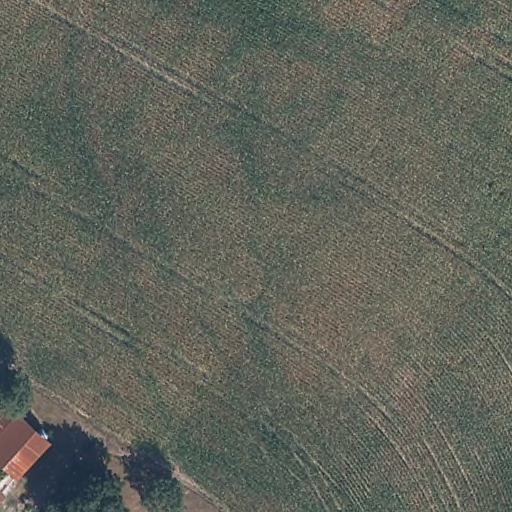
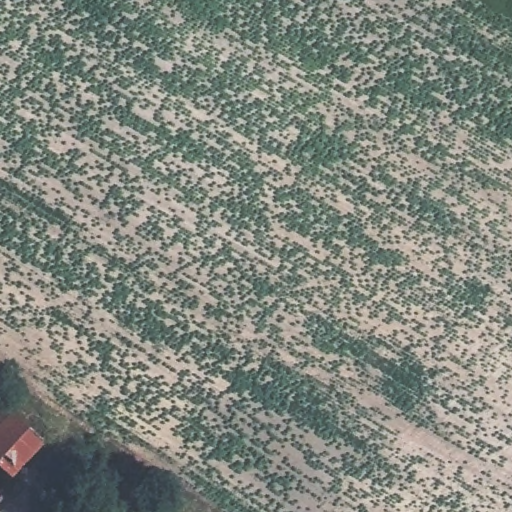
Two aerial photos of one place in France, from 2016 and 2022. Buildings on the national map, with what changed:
unchanged [(48,436),(16,471),(0,457),(0,393),(48,436)]
unchanged [(8,470),(16,478),(5,492),(0,497),(0,464),(8,470)]

